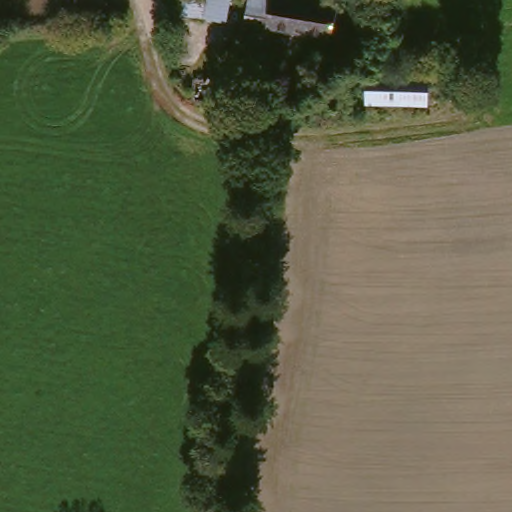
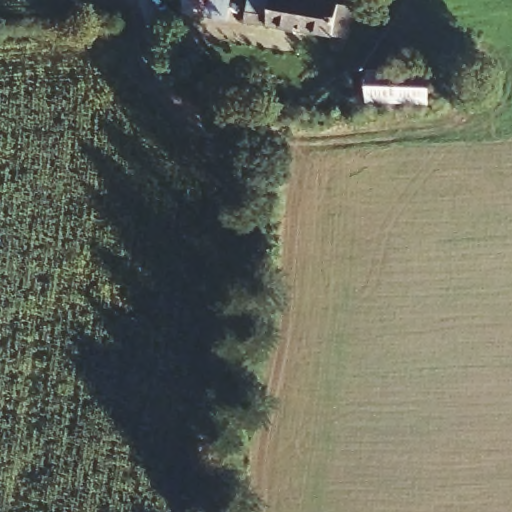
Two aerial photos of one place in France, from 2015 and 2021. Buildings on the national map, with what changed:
unchanged [(189,20),(193,0),(217,0),(214,25),(189,20)]
unchanged [(341,41),(235,26),(238,0),(233,0),(286,0),(344,9),(341,41)]
unchanged [(427,79),(427,111),(364,110),(364,78),(427,79)]

